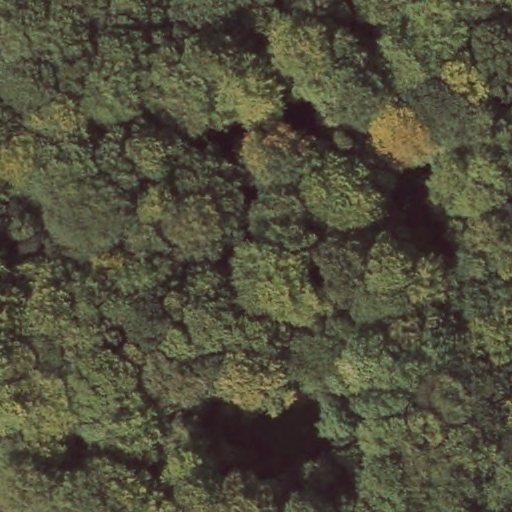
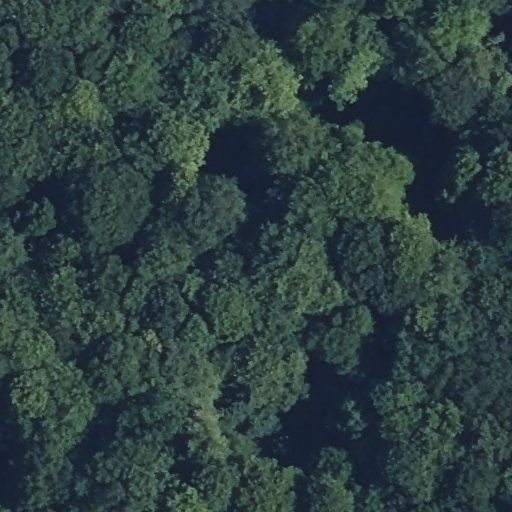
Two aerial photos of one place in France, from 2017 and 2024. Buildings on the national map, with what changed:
unchanged [(282,373),(315,363),(325,397),(292,407),(282,373)]

